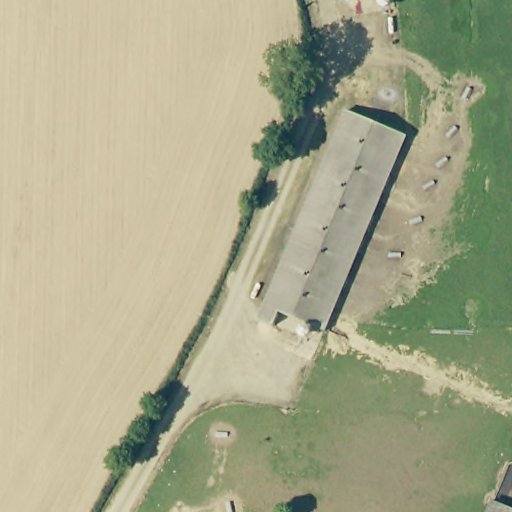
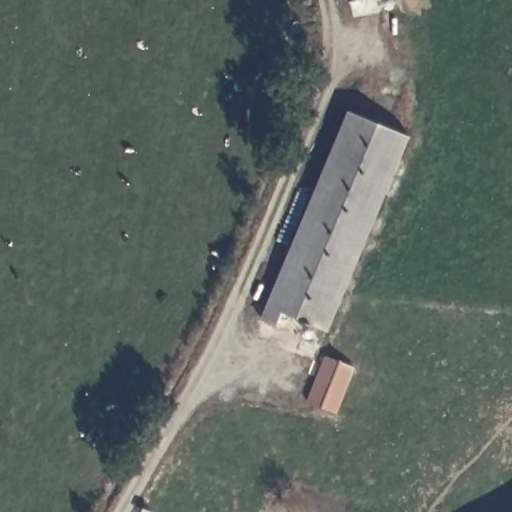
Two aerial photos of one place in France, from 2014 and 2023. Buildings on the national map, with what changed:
unchanged [(346,3),(346,0),(368,0),(346,3)]
unchanged [(408,135),(325,332),(279,312),(272,326),(258,320),(348,109),(408,135)]
new [(337,413),(305,402),(324,355),(355,367),(337,413)]
demolished [(512,506),(512,512),(493,512),(498,499),(512,506)]
new [(511,512),(512,511),(512,512),(511,512)]

